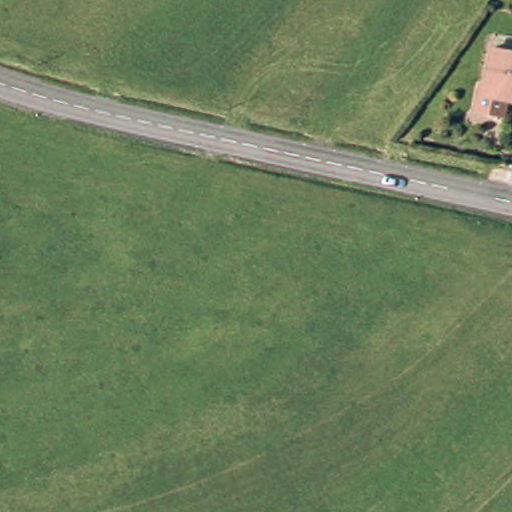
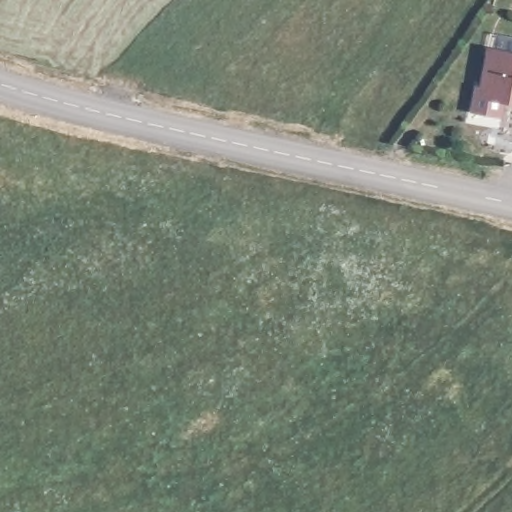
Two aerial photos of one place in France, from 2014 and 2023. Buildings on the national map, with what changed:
unchanged [(482,98),(492,54),(512,58),(512,105),(482,98)]

